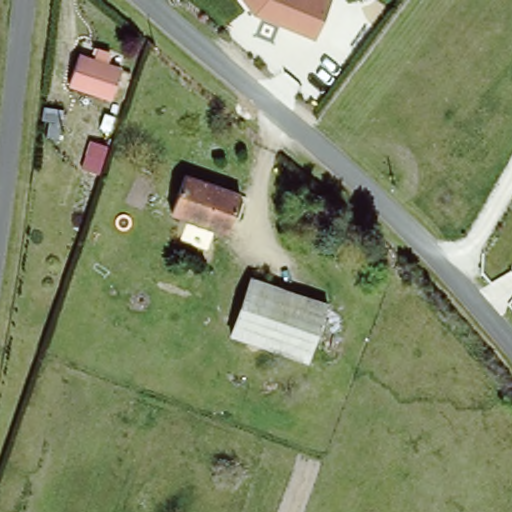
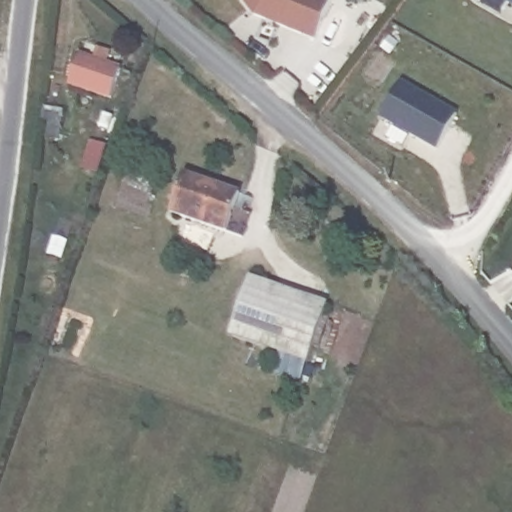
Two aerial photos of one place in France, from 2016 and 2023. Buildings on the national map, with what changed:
unchanged [(243,0),(331,0),(316,40),(253,15),(243,0)]
new [(503,0),(512,0),(512,5),(503,0)]
unchanged [(74,58),(116,72),(106,103),(65,89),(74,58)]
new [(439,150),(382,118),(402,81),(460,112),(439,150)]
unchanged [(241,196),(227,236),(172,213),(186,175),(241,196)]
unchanged [(330,308),(310,367),(232,340),(254,280),(330,308)]

